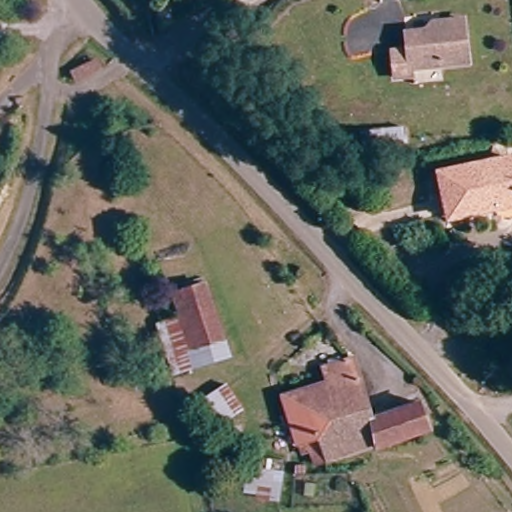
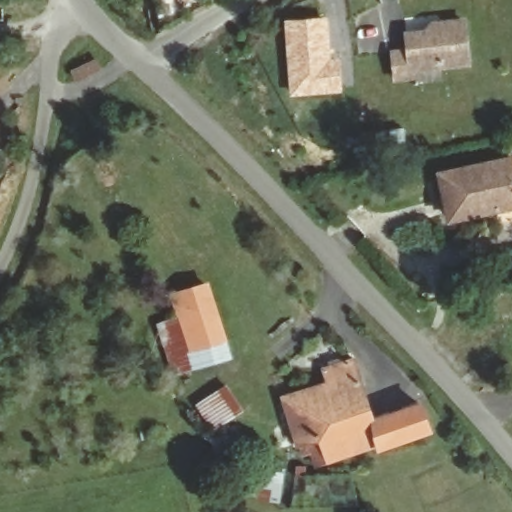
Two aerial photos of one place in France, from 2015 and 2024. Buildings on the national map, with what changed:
new [(328,14),(331,49),(339,49),(342,92),(289,96),(283,19),(328,14)]
unchanged [(469,73),(412,80),(413,87),(396,89),(393,62),(409,60),(407,44),(425,42),(431,33),(440,32),(464,30),(469,73)]
unchanged [(389,135),(391,149),(363,152),(361,138),(389,135)]
unchanged [(512,205),(451,218),(442,173),(512,158),(512,205)]
unchanged [(212,283),(235,356),(202,365),(179,293),(212,283)]
unchanged [(435,426),(385,444),(383,438),(336,455),(322,460),(315,437),(304,441),(296,416),(292,417),(290,411),(295,409),(289,392),(333,377),(329,362),(360,353),(377,413),(425,398),(435,426)]
unchanged [(213,429),(196,403),(226,384),(243,410),(213,429)]
unchanged [(279,499),(259,496),(263,470),(282,472),(279,499)]

